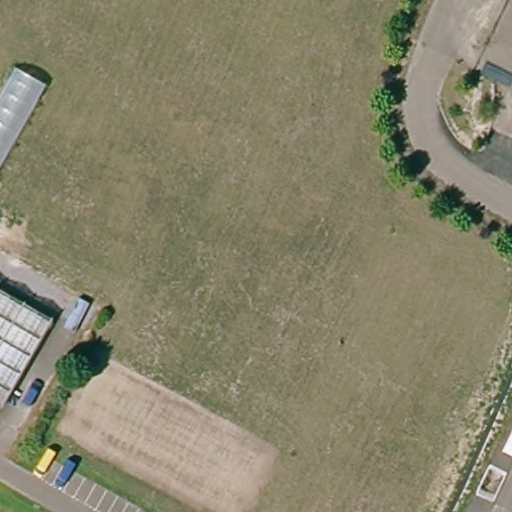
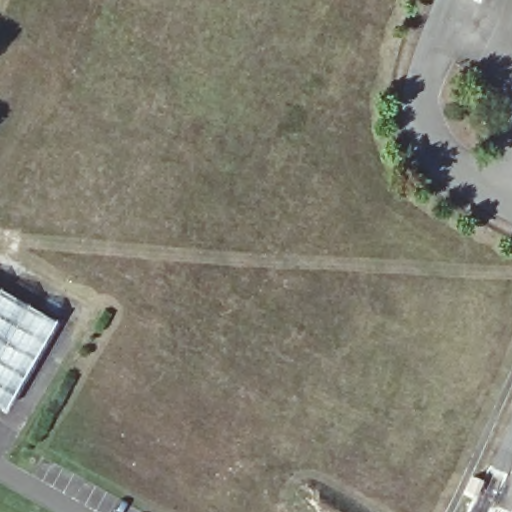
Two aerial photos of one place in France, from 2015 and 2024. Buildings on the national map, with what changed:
demolished [(48,83),(0,167),(0,98),(18,65),(48,83)]
unchanged [(52,317),(1,407),(0,407),(0,287),(52,317)]

